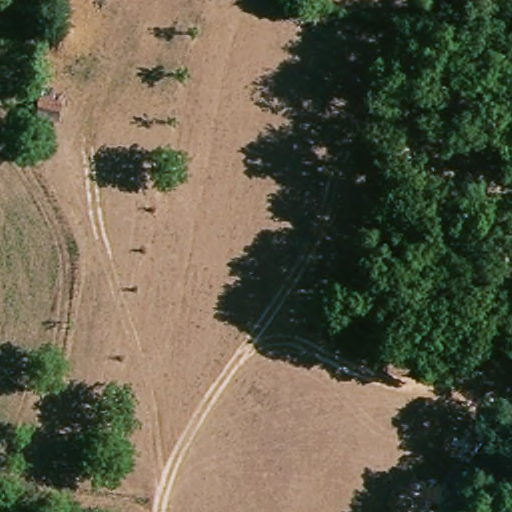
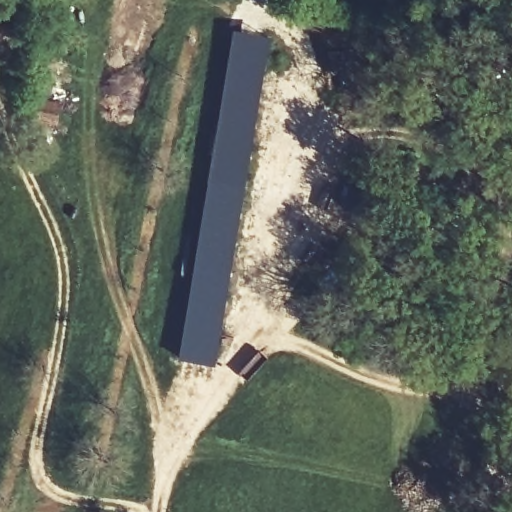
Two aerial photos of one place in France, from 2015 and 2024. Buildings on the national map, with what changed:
new [(233,29),(273,36),(262,90),(250,166),(216,365),(178,358),(233,29)]
unchanged [(53,84),(34,74),(44,55),(64,65),(53,84)]

